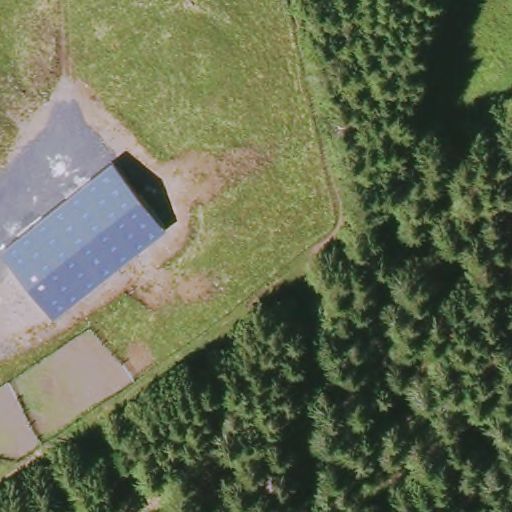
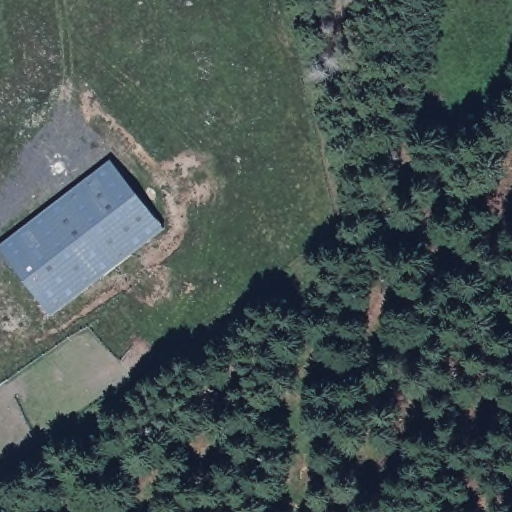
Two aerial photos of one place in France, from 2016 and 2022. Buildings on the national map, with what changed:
unchanged [(164,230),(52,318),(0,251),(0,248),(111,162),(164,230)]

